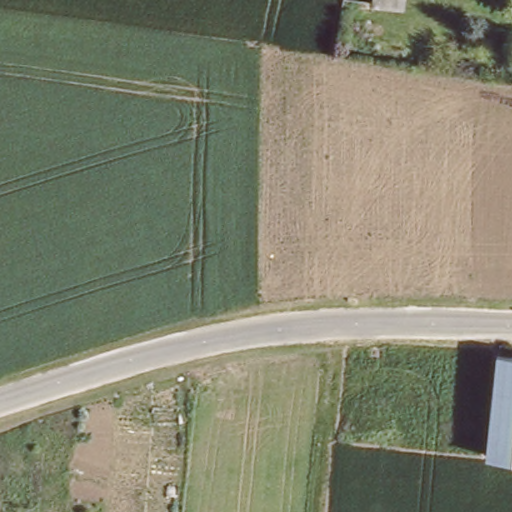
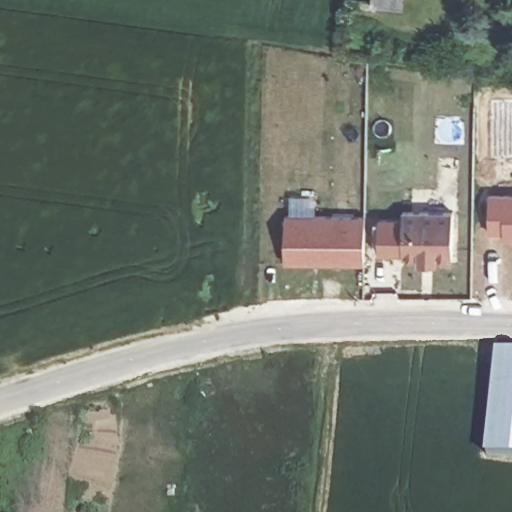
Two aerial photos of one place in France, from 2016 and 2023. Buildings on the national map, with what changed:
unchanged [(390,0),(406,0),(406,4),(390,0)]
new [(453,259),(436,258),(437,263),(418,263),(419,257),(402,257),(403,210),(454,211),(453,259)]
new [(366,217),(365,264),(286,263),(286,214),(366,217)]
unchanged [(512,350),(512,462),(488,460),(499,349),(512,350)]

